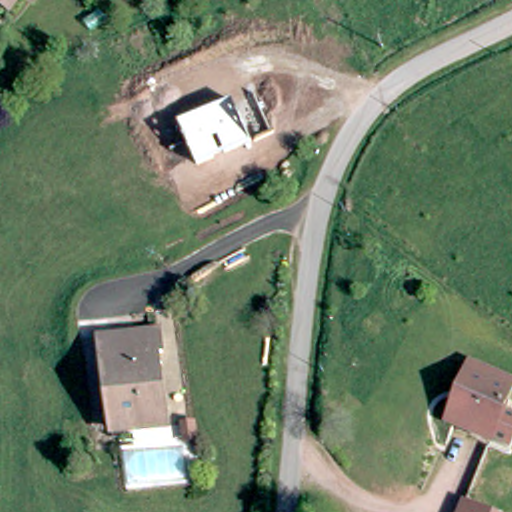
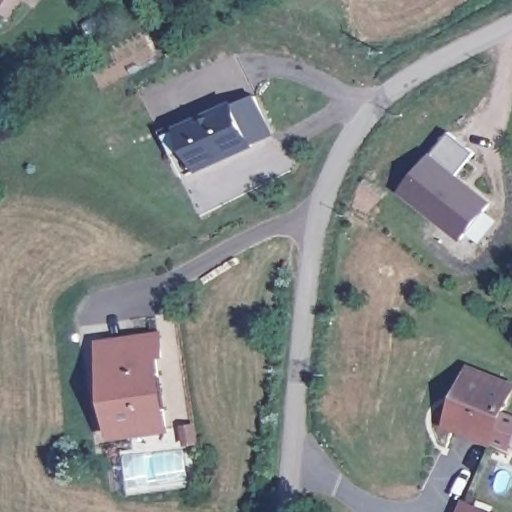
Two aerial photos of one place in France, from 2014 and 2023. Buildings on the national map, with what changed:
unchanged [(0,2),(0,0),(24,0),(16,13),(0,2)]
unchanged [(235,102),(253,147),(199,171),(180,127),(235,102)]
new [(476,152),(457,176),(489,203),(461,237),(404,191),(431,156),(452,131),(476,152)]
unchanged [(121,450),(120,439),(109,367),(106,347),(134,343),(170,336),(174,360),(164,362),(173,433),(136,437),(137,448),(121,450)]
unchanged [(494,441),(456,427),(452,426),(464,393),(472,370),(512,384),(512,390),(505,411),(512,414),(512,446),(495,440),(494,441)]
unchanged [(485,512),(457,512),(461,503),(485,512)]

